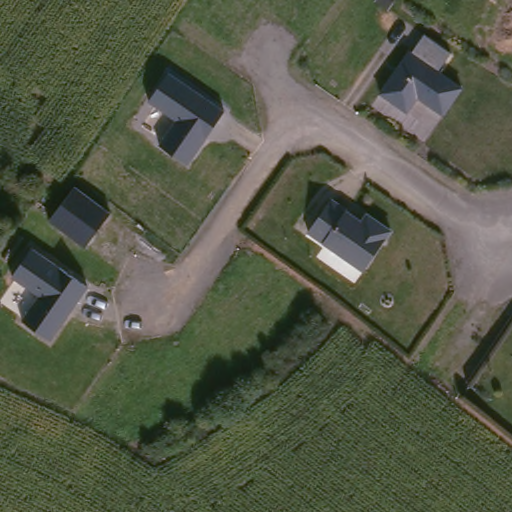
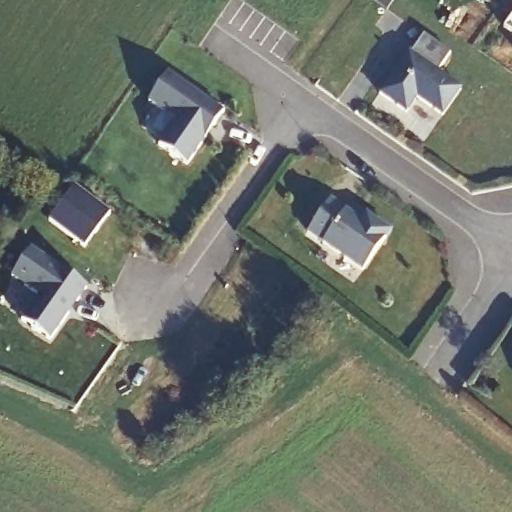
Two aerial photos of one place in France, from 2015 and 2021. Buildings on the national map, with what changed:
unchanged [(456,53),(443,71),(467,88),(448,115),(422,97),(412,112),(385,93),(414,51),(416,53),(429,34),(456,53)]
unchanged [(229,111),(219,125),(216,123),(208,135),(211,137),(192,165),(164,145),(180,120),(153,102),(173,73),(229,111)]
unchanged [(74,186),(110,213),(97,230),(85,247),(49,221),(61,204),(74,186)]
unchanged [(363,275),(308,237),(331,203),(347,215),(346,216),(361,227),(367,219),(374,224),(391,235),(363,275)]
unchanged [(92,287),(82,301),(79,299),(71,311),(75,313),(55,340),(26,320),(44,296),(16,277),(36,248),(92,287)]

